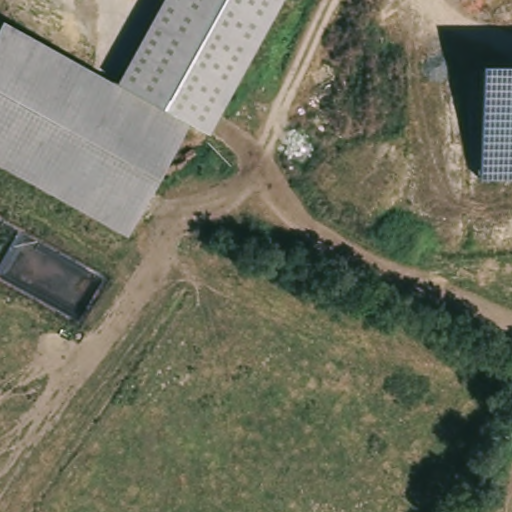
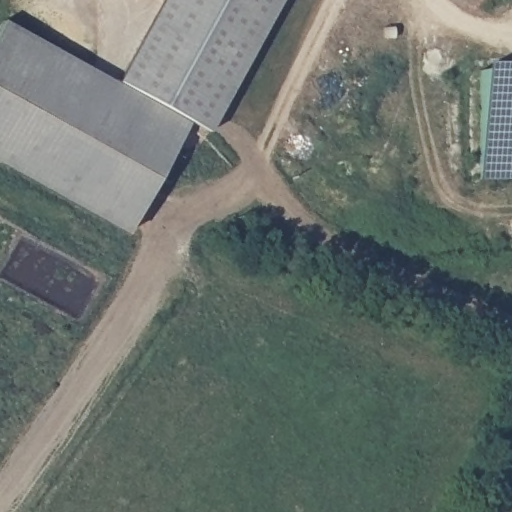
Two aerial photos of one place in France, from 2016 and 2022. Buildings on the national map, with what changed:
unchanged [(190,121),(144,208),(131,232),(0,161),(0,24),(3,18),(117,80),(160,0),(281,0),(210,131),(190,121)]
unchanged [(480,64),(512,64),(512,180),(480,180),(480,64)]

